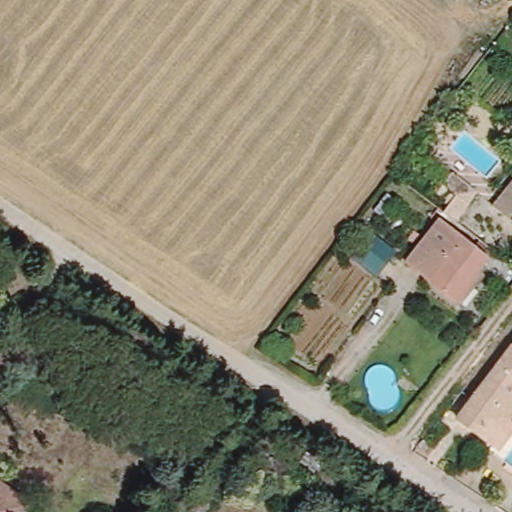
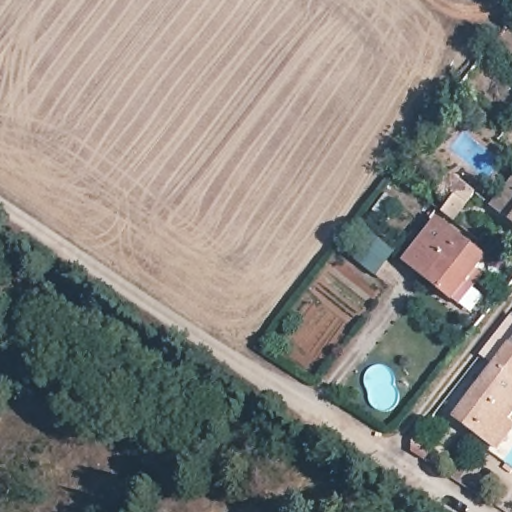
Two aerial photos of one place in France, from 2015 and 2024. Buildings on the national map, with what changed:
unchanged [(512,169),(512,223),(486,203),(512,169)]
unchanged [(442,214),(454,197),(467,206),(455,223),(442,214)]
unchanged [(367,215),(401,248),(381,278),(349,250),(367,215)]
unchanged [(404,263),(434,223),(485,263),(454,302),(404,263)]
unchanged [(459,423),(512,348),(512,442),(503,454),(459,423)]
unchanged [(292,476),(306,454),(321,464),(308,486),(292,476)]
unchanged [(0,481),(38,503),(32,512),(0,512),(0,481)]

